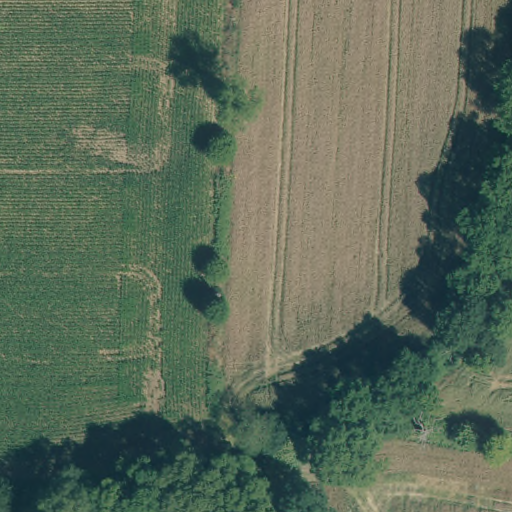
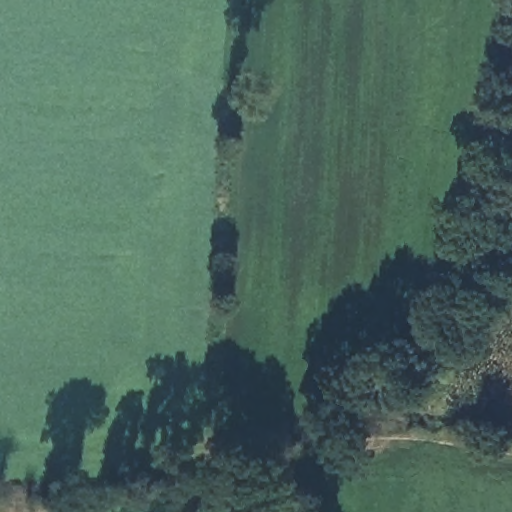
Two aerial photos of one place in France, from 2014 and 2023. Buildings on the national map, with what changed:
[]

